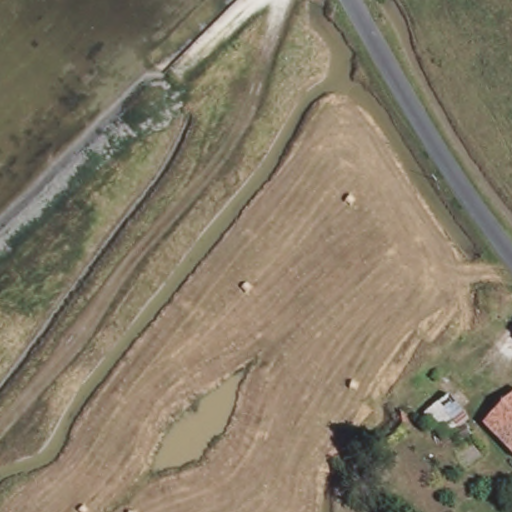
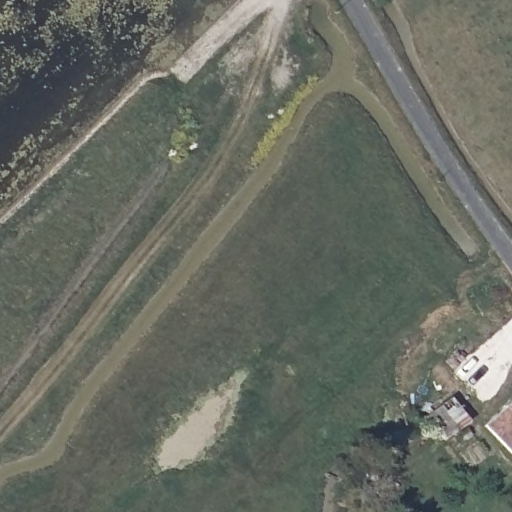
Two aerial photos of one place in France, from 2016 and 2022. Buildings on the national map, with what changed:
unchanged [(512,397),(512,458),(481,428),(512,397)]
unchanged [(437,408),(452,434),(437,442),(423,416),(437,408)]

